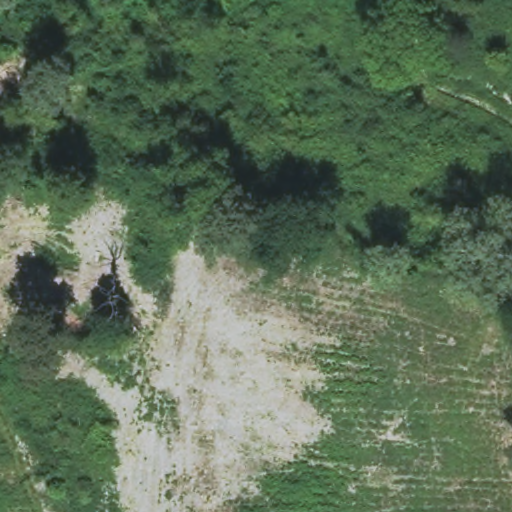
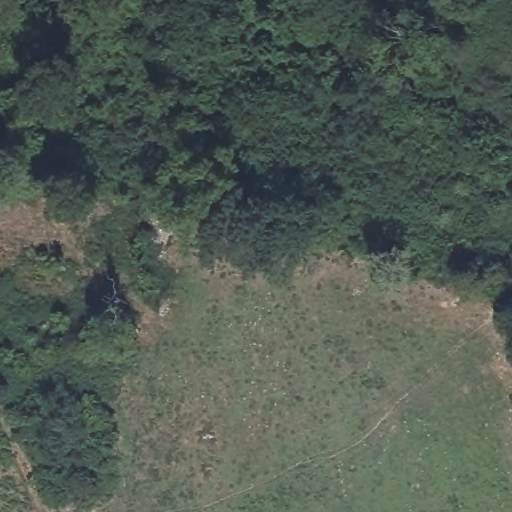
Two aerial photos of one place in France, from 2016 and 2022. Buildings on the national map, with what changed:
[]

